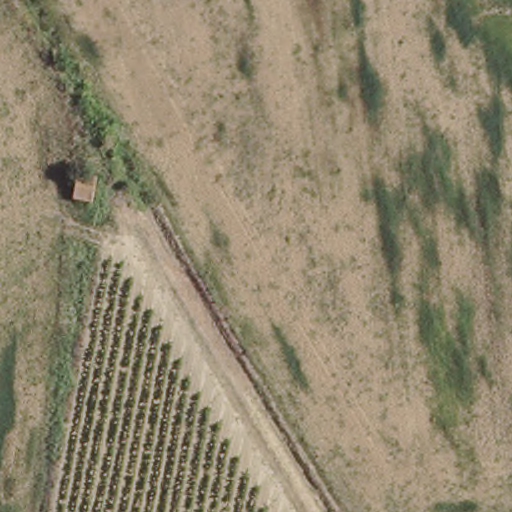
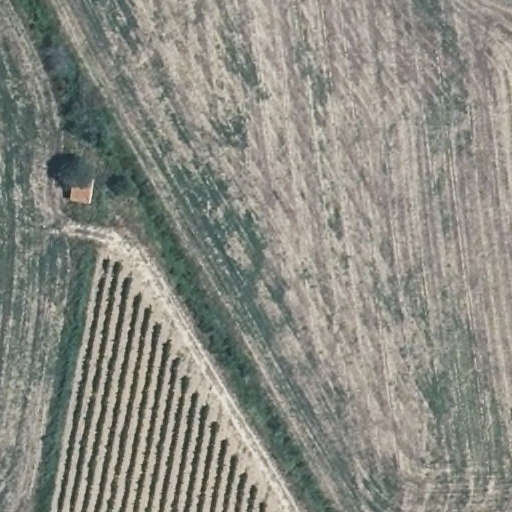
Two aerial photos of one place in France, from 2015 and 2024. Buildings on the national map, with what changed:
unchanged [(93,176),(88,206),(64,201),(72,173),(93,176)]

